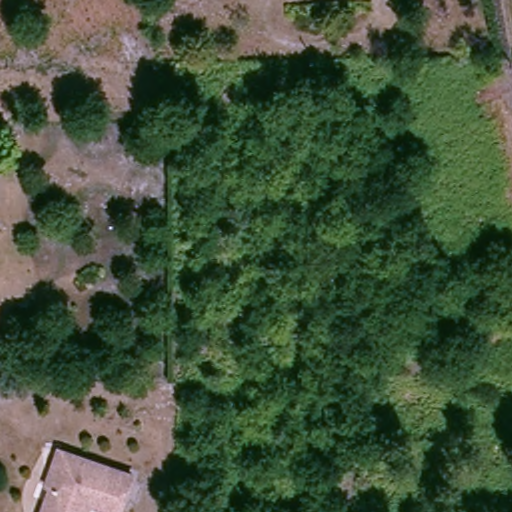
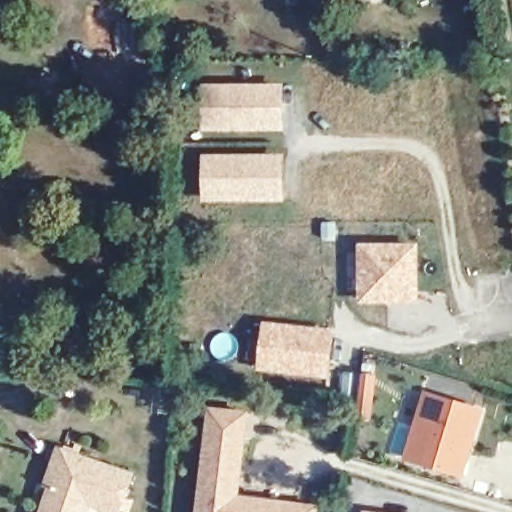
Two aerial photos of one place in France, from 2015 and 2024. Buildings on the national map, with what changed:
new [(203,84),(284,83),(285,132),(202,131),(203,84)]
new [(284,154),(285,202),(202,202),(202,154),(284,154)]
new [(419,242),(419,303),(357,304),(358,243),(419,242)]
new [(335,329),(330,379),(257,370),(263,321),(335,329)]
new [(485,409),(463,478),(402,460),(424,390),(485,409)]
new [(250,410),(240,495),(319,505),(318,512),(194,512),(207,406),(250,410)]
unchanged [(48,481),(43,480),(50,462),(55,445),(128,471),(115,507),(87,497),(81,512),(38,512),(48,481)]
new [(379,512),(363,512),(363,510),(379,512)]

